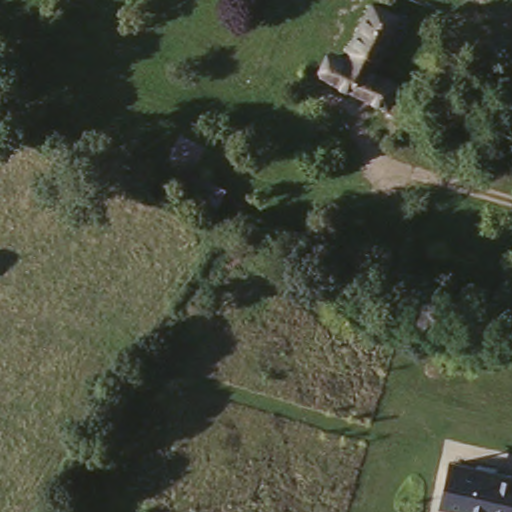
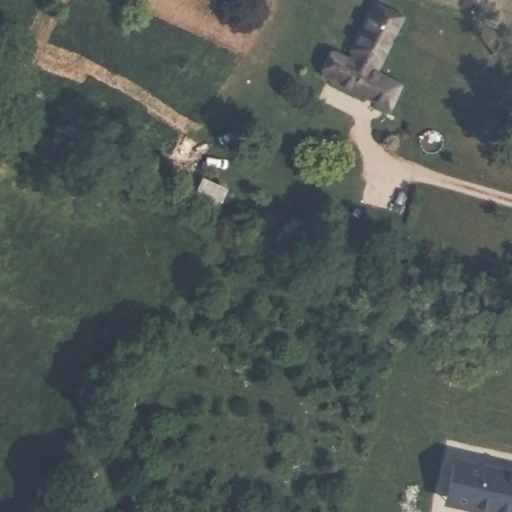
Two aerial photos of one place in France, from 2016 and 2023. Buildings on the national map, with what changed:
unchanged [(490,0),(498,0),(496,3),(490,0)]
unchanged [(403,21),(373,76),(398,89),(387,111),(324,77),(334,57),(362,71),(367,62),(349,51),(372,5),(403,21)]
unchanged [(229,184),(215,206),(171,189),(180,171),(229,184)]
unchanged [(445,460),(512,476),(512,512),(450,512),(434,508),(445,460)]

